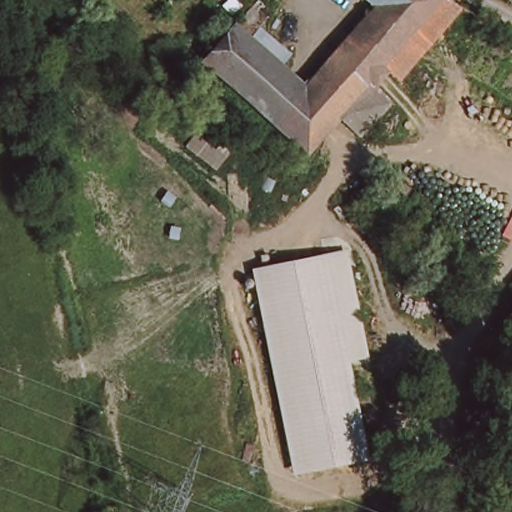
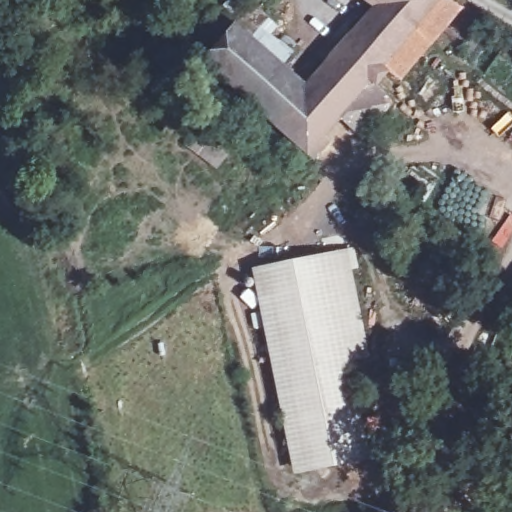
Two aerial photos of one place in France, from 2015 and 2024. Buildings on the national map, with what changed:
unchanged [(431,11),(408,37),(383,66),(372,80),(390,97),(368,119),(357,132),(337,114),(328,123),(320,131),(302,149),(288,136),(264,115),(239,92),(210,67),(200,56),(217,37),(247,5),(251,0),(259,0),(269,9),(247,34),(267,51),(289,71),(303,84),(317,69),(345,37),(377,1),(375,0),(440,0),(431,11)]
unchanged [(463,5),(443,30),(431,44),(402,77),(383,66),(408,37),(431,11),(440,0),(455,0),(463,5)]
unchanged [(369,357),(353,360),(372,461),(295,475),(253,269),(348,249),(369,357)]

